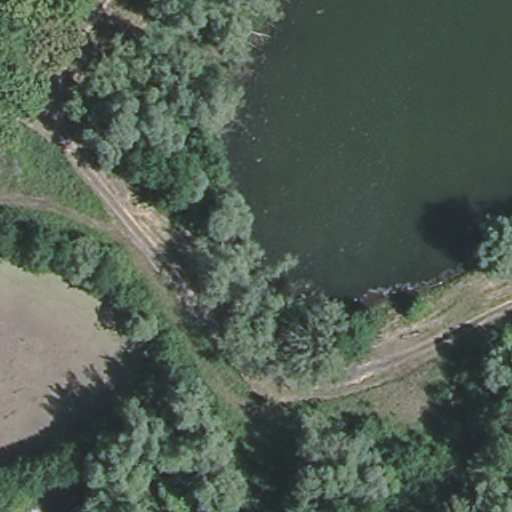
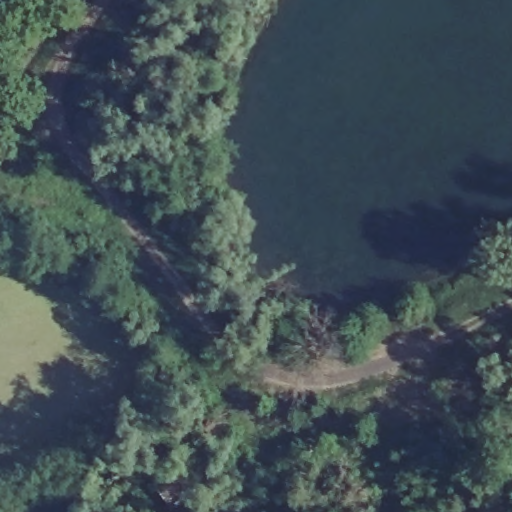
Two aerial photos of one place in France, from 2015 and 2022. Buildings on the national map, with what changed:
unchanged [(197,491),(167,511),(152,492),(182,470),(197,491)]

